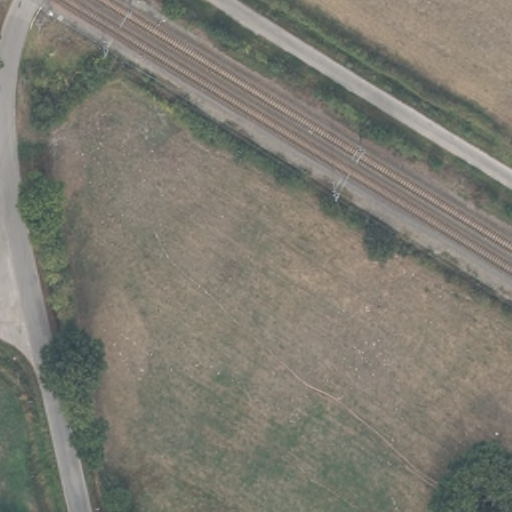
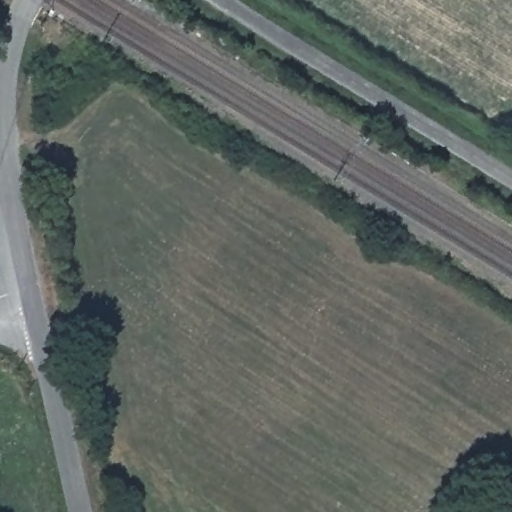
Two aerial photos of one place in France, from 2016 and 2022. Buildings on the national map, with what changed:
[]

